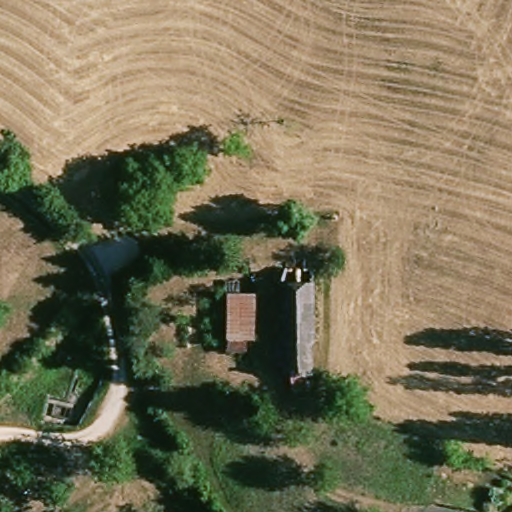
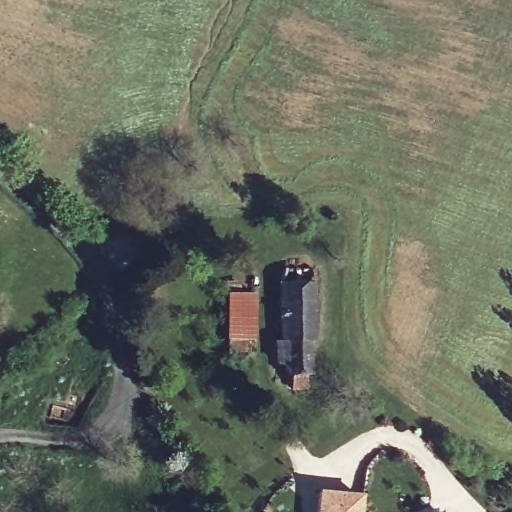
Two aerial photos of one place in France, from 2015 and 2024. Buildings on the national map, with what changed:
unchanged [(301,392),(301,402),(285,399),(279,383),(271,382),(269,356),(275,354),(273,305),(278,283),(299,282),(299,267),(311,267),(313,283),(309,282),(308,319),(311,355),(306,357),(309,392),(301,392)]
unchanged [(228,282),(239,283),(241,291),(255,292),(253,338),(221,342),(223,311),(228,282)]
unchanged [(63,358),(66,355),(73,360),(69,368),(60,366),(63,358)]
new [(361,512),(315,512),(317,490),(362,494),(361,512)]

